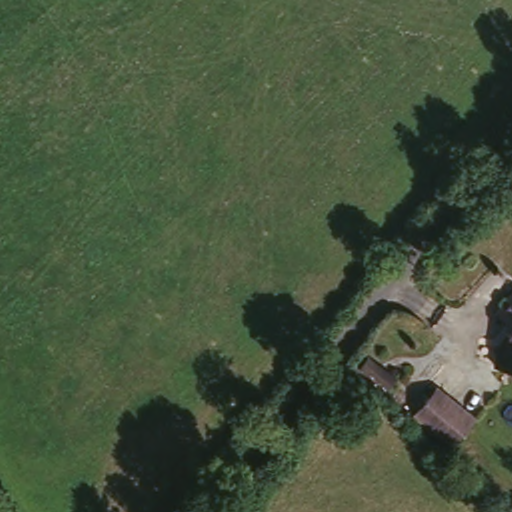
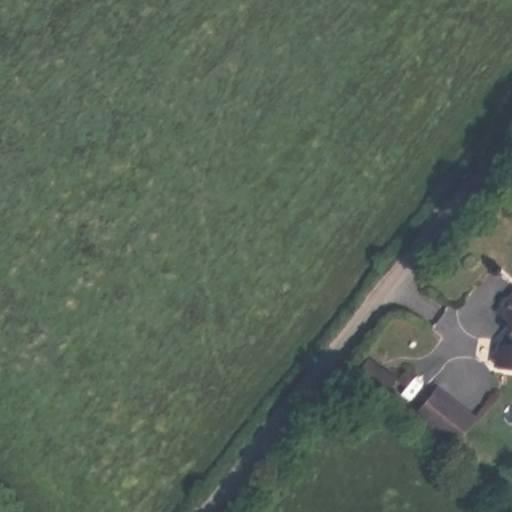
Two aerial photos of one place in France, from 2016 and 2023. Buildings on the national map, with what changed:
unchanged [(491,345),(510,324),(495,312),(512,292),(512,369),(490,369),(491,345)]
unchanged [(352,368),(360,352),(393,375),(383,391),(352,368)]
unchanged [(439,390),(447,400),(471,424),(446,449),(413,414),(429,399),(439,390)]

